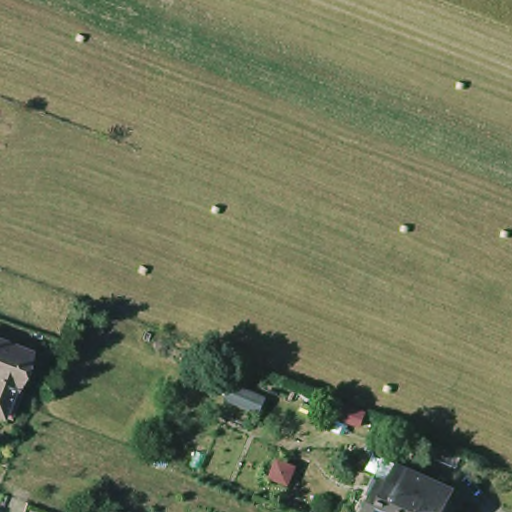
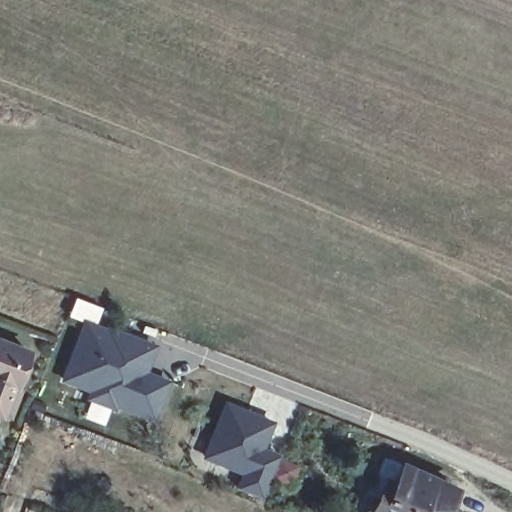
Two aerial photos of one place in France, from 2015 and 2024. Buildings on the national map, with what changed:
new [(160,345),(150,372),(172,381),(156,422),(115,408),(115,411),(86,400),(87,392),(60,382),(85,317),(160,345)]
unchanged [(25,363),(16,386),(12,385),(2,413),(0,412),(0,339),(30,351),(25,363)]
new [(275,422),(267,449),(281,454),(265,501),(237,490),(240,475),(204,458),(225,400),(275,422)]
unchanged [(463,489),(453,512),(367,512),(383,474),(393,478),(402,482),(410,464),(463,489)]

